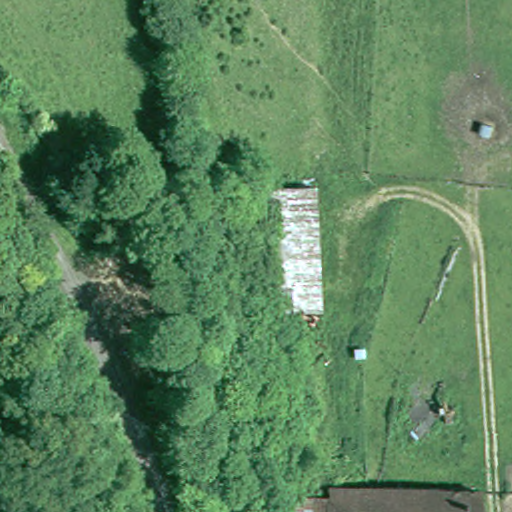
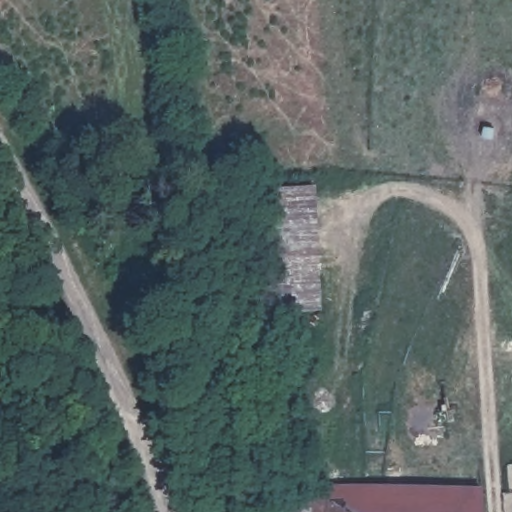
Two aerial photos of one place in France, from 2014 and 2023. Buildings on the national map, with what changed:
unchanged [(330,495),(331,480),(487,485),(486,512),(295,512),(296,493),(330,495)]

